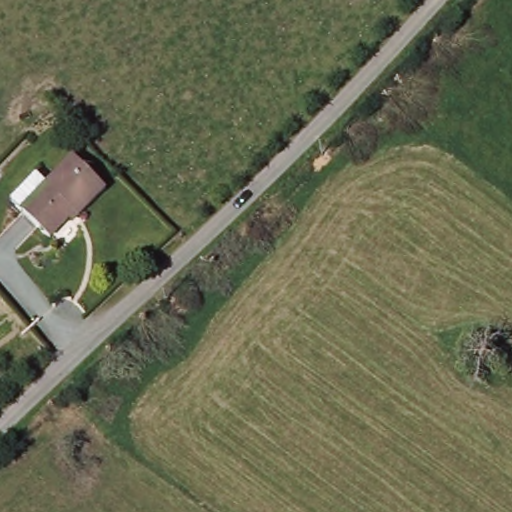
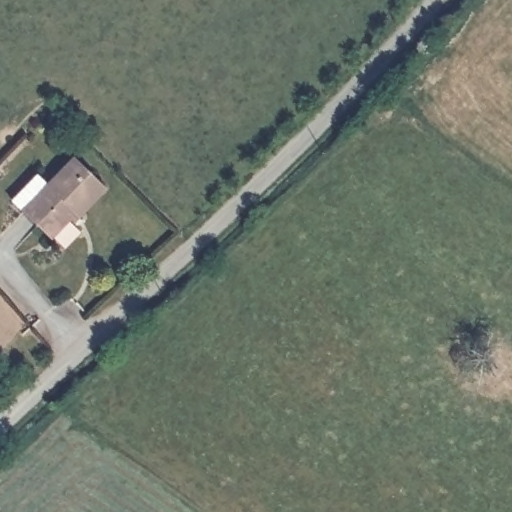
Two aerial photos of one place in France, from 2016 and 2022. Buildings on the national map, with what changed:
unchanged [(112,202),(84,228),(79,223),(55,248),(17,207),(7,196),(33,172),(43,182),(70,156),(112,202)]

